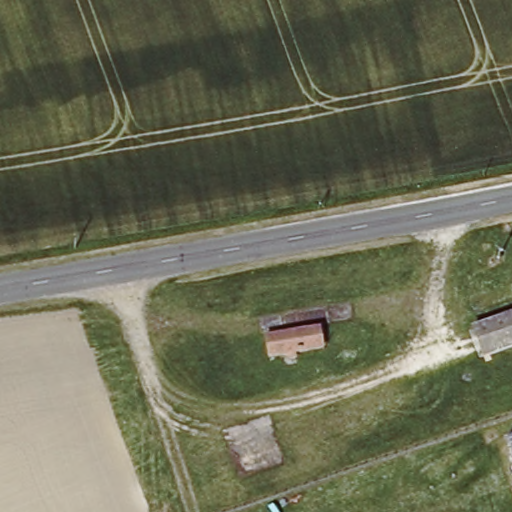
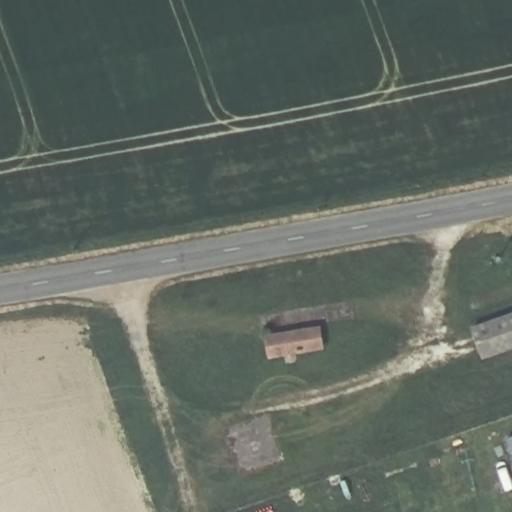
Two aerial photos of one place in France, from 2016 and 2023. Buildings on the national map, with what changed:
unchanged [(512,341),(480,351),(470,323),(512,310),(512,341)]
unchanged [(319,325),(323,345),(297,350),(297,357),(288,358),(287,352),(269,355),(265,334),(319,325)]
unchanged [(512,440),(510,433),(512,433),(512,440)]

